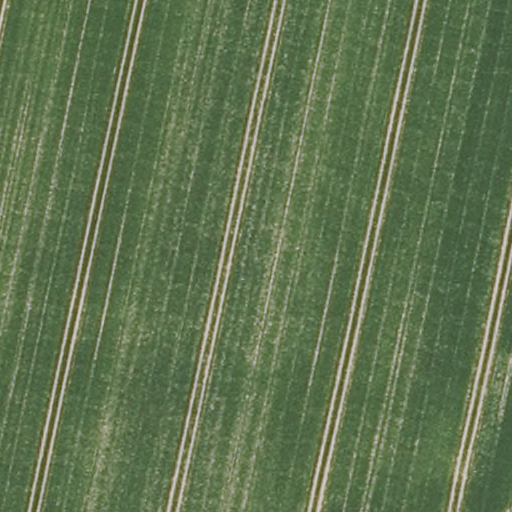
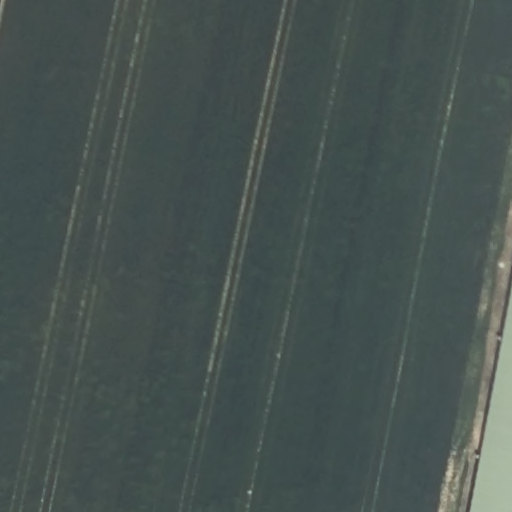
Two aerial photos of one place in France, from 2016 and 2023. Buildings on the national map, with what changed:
new [(470,512),(512,282),(512,512),(470,512)]

